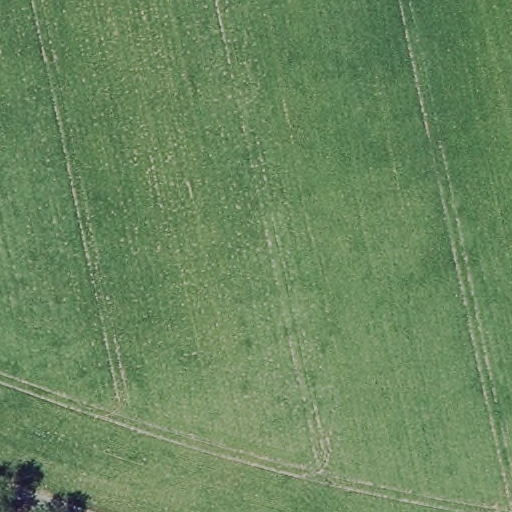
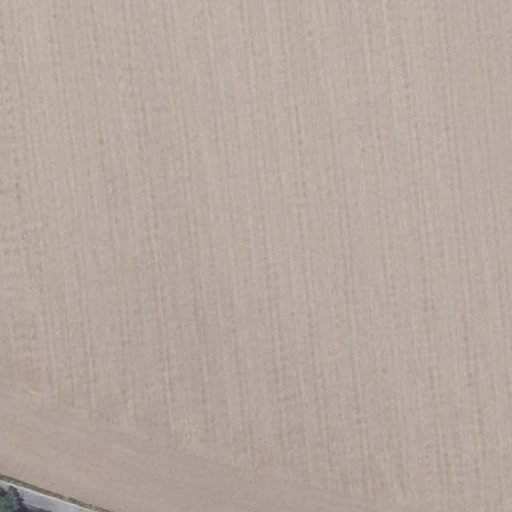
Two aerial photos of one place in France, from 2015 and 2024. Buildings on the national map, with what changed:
[]

